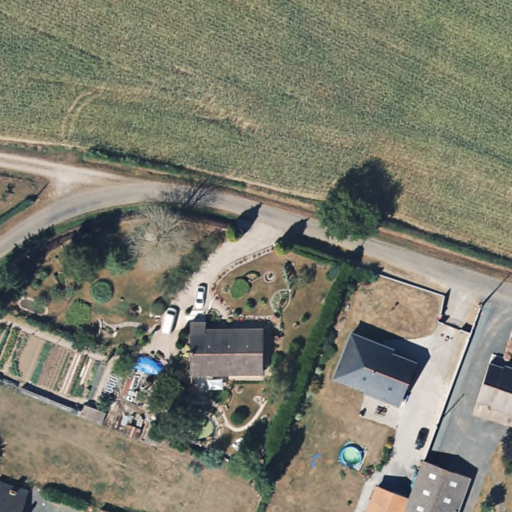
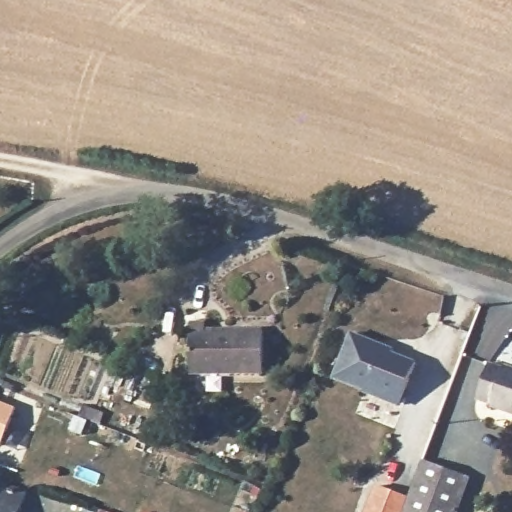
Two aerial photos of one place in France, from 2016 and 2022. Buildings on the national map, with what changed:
unchanged [(261,336),(259,378),(189,375),(191,324),(207,324),(207,334),(261,336)]
unchanged [(382,343),(380,349),(387,351),(388,349),(415,360),(399,401),(333,375),(351,330),(382,343)]
unchanged [(493,404),(479,399),(491,364),(504,368),(505,365),(512,367),(512,417),(491,409),(493,404)]
new [(13,406),(0,442),(0,401),(13,406)]
unchanged [(469,477),(456,512),(402,512),(408,495),(421,460),(469,477)]
unchanged [(408,495),(402,512),(366,512),(377,483),(408,495)]
unchanged [(29,494),(24,512),(0,512),(0,485),(29,494)]
unchanged [(89,512),(72,512),(74,507),(89,512)]

